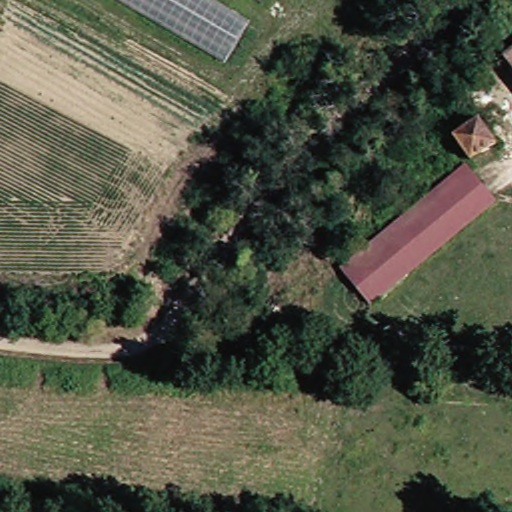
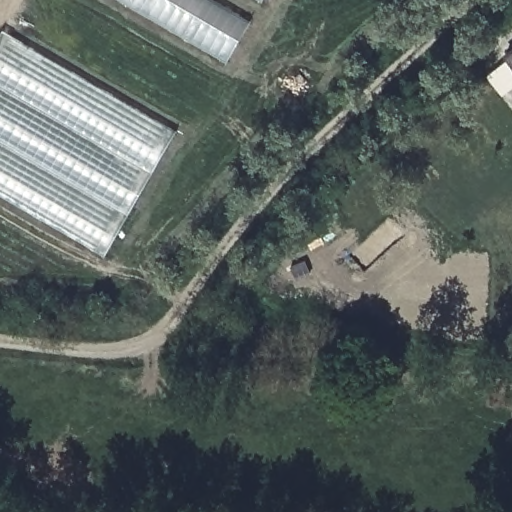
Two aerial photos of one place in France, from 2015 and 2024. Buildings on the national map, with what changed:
unchanged [(113,0),(211,0),(249,22),(222,63),(113,0)]
unchanged [(264,0),(262,2),(258,0),(264,0)]
new [(175,134),(104,257),(0,196),(0,37),(2,33),(175,134)]
unchanged [(512,54),(512,62),(507,57),(512,54)]
unchanged [(460,148),(448,135),(477,115),(497,143),(472,162),(470,160),(460,148)]
unchanged [(374,305),(346,268),(471,167),(500,204),(374,305)]

